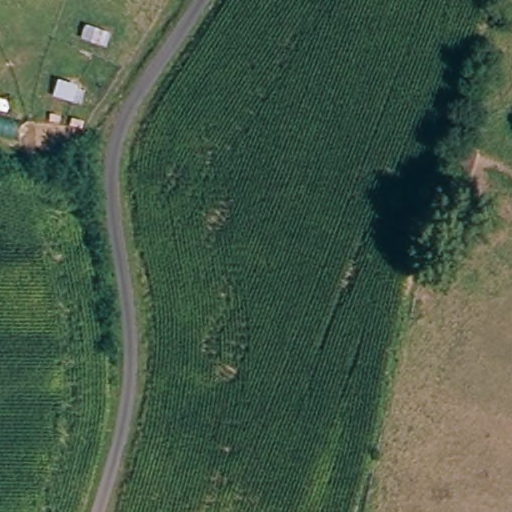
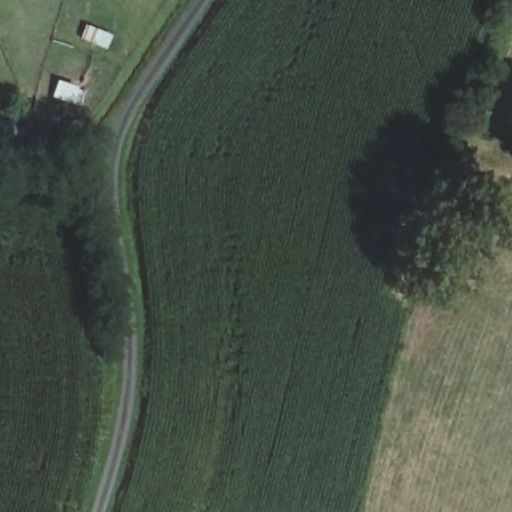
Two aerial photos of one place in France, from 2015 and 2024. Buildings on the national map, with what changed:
unchanged [(494,177),(487,209),(466,205),(472,172),(494,177)]

